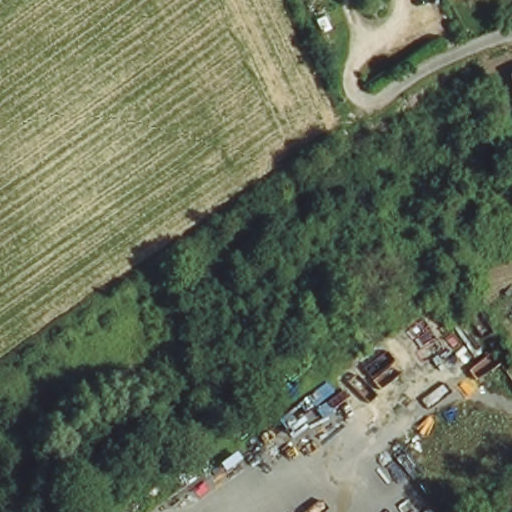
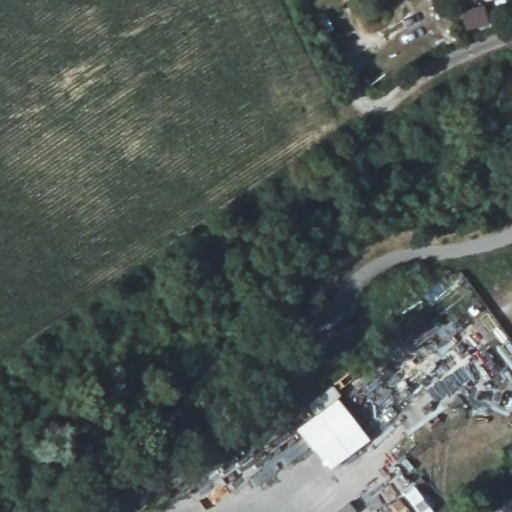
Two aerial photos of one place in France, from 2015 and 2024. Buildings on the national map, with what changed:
new [(368,441),(328,470),(296,430),(337,399),(368,441)]

